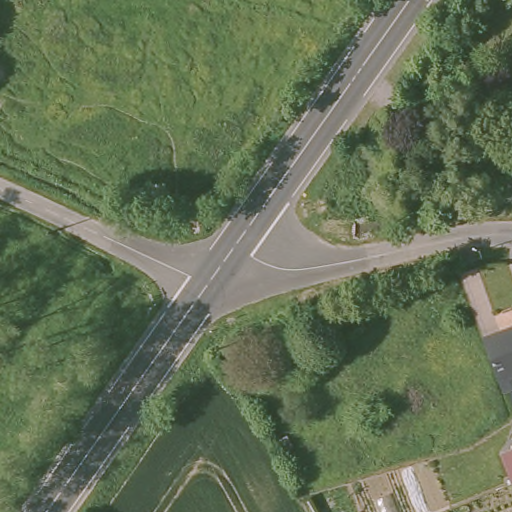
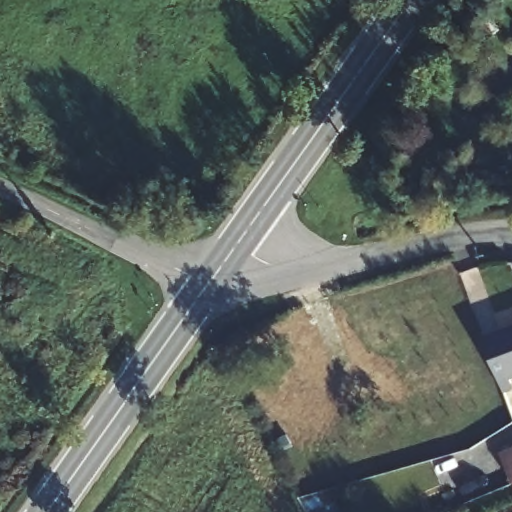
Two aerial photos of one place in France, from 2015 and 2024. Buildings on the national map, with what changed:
unchanged [(512,377),(495,383),(482,349),(512,338),(512,377)]

